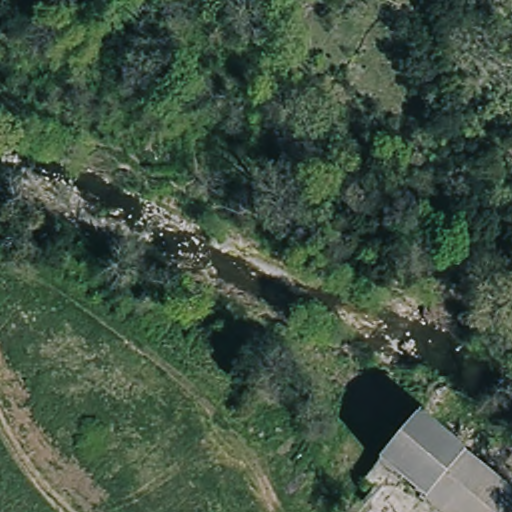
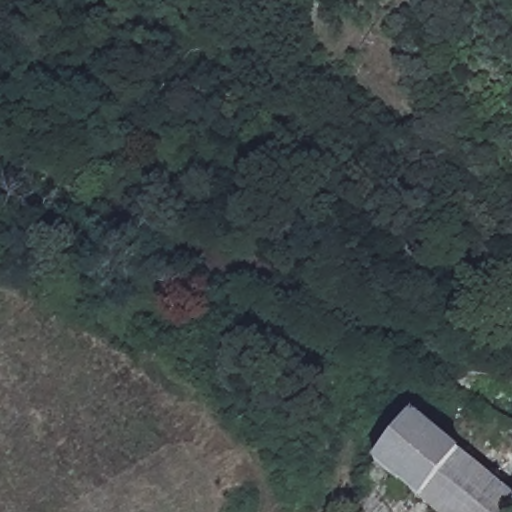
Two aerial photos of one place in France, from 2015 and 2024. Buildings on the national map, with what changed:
unchanged [(512,512),(432,512),(373,463),(417,411),(512,493),(512,512)]

